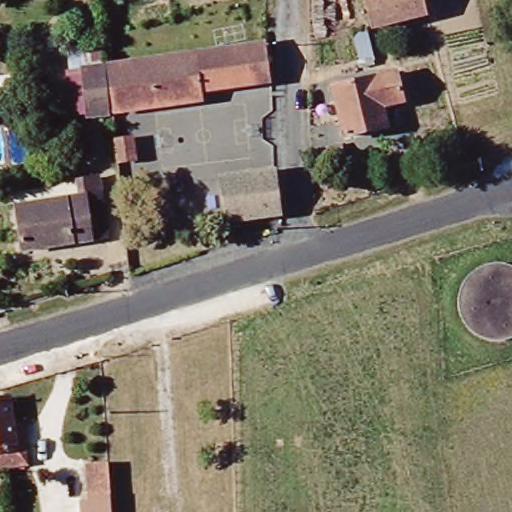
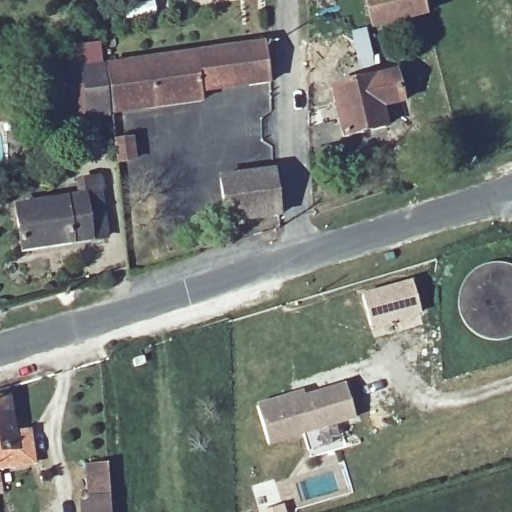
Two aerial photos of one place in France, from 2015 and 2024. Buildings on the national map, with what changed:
unchanged [(424,0),(429,18),(375,33),(367,0),(424,0)]
unchanged [(82,67),(90,117),(79,119),(66,44),(100,40),(103,64),(82,67)]
unchanged [(111,61),(273,43),(277,80),(207,88),(208,100),(116,111),(111,61)]
unchanged [(111,114),(90,117),(82,67),(103,64),(111,114)]
unchanged [(389,106),(393,126),(352,136),(340,85),(402,70),(409,101),(389,106)]
unchanged [(0,97),(10,97),(11,125),(0,125),(0,97)]
unchanged [(115,141),(131,139),(136,165),(118,168),(115,141)]
unchanged [(351,144),(355,163),(329,168),(326,149),(351,144)]
unchanged [(232,224),(226,182),(280,173),(281,218),(232,224)]
unchanged [(105,178),(114,236),(27,249),(21,206),(90,195),(87,181),(105,178)]
new [(410,282),(418,312),(368,326),(359,296),(410,282)]
new [(290,395),(292,400),(342,386),(352,418),(266,443),(255,406),(290,395)]
unchanged [(0,465),(0,398),(15,396),(25,461),(0,465)]
unchanged [(91,505),(96,502),(95,465),(114,460),(118,512),(91,512),(91,505)]

